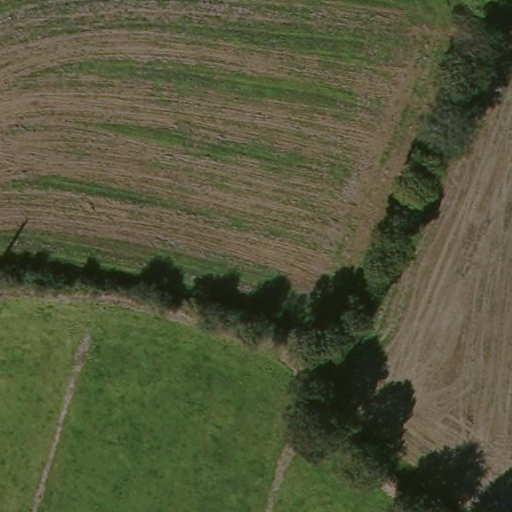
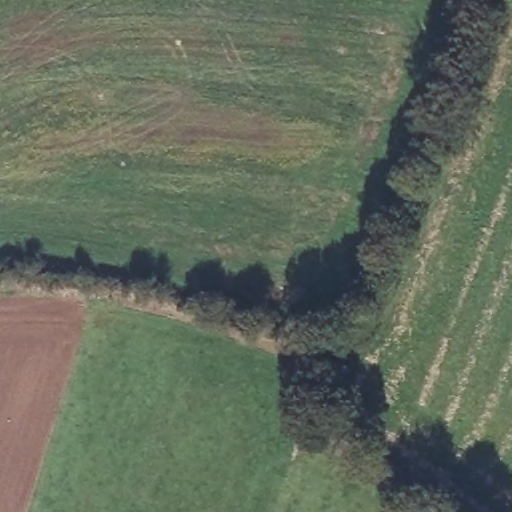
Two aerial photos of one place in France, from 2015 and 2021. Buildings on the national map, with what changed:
[]

